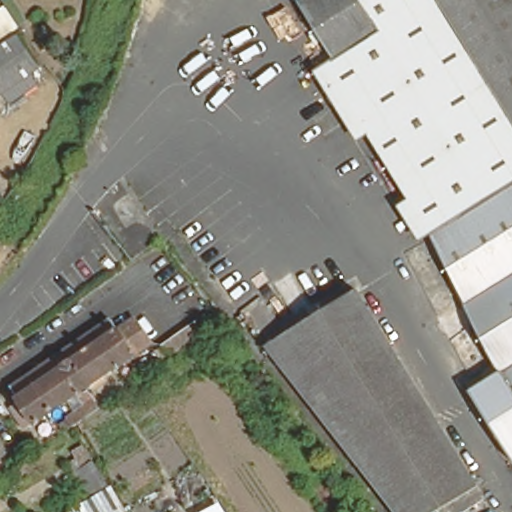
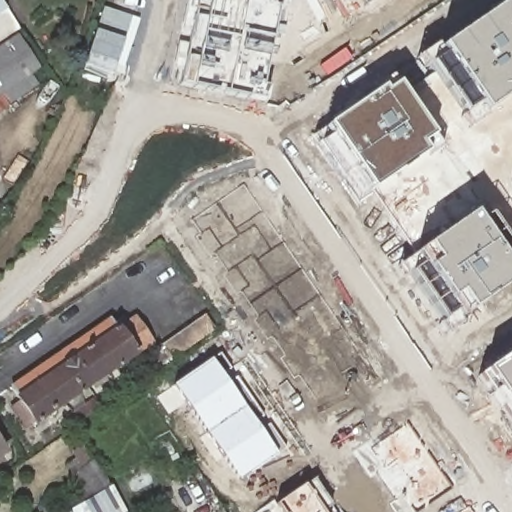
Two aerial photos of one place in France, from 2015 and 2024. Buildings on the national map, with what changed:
new [(193,85),(179,84),(182,69),(172,69),(178,43),(188,42),(190,28),(181,28),(186,0),(285,0),(283,10),(276,8),(270,39),(266,60),(261,84),(269,86),(265,102),(249,98),(249,99),(192,88),(193,85)]
demolished [(298,0),(512,0),(512,187),(499,195),(439,231),(437,228),(417,196),(415,192),(401,170),(376,129),(333,58),(297,0),(298,0)]
new [(365,6),(360,0),(371,0),(365,6)]
new [(435,45),(437,49),(505,4),(511,0),(512,0),(512,93),(482,113),(468,129),(458,114),(460,110),(432,73),(426,65),(423,68),(416,57),(435,45)]
unchanged [(0,43),(0,9),(16,32),(0,43)]
unchanged [(30,81),(2,99),(0,95),(0,43),(16,32),(40,60),(24,70),(30,81)]
new [(368,193),(437,145),(401,93),(432,73),(460,110),(458,114),(468,129),(482,113),(512,93),(512,180),(510,182),(512,185),(512,254),(486,217),(475,221),(471,216),(425,246),(416,254),(368,193)]
new [(392,81),(395,85),(401,93),(437,145),(368,193),(323,129),(392,81)]
new [(512,180),(512,185),(510,182),(512,180)]
new [(242,182),(377,375),(324,411),(299,373),(293,377),(280,357),(283,353),(270,335),(267,337),(254,317),(257,314),(240,289),(235,292),(222,272),(227,270),(215,251),(210,254),(195,234),(200,231),(192,218),(242,182)]
demolished [(499,195),(512,187),(512,461),(470,390),(502,372),(464,299),(439,231),(499,195)]
new [(425,246),(471,216),(475,221),(486,217),(512,254),(512,272),(510,273),(512,277),(512,283),(460,318),(457,315),(445,333),(437,322),(439,316),(409,273),(406,278),(398,265),(416,254),(425,246)]
demolished [(480,485),(436,512),(400,512),(272,344),(359,289),(480,485)]
unchanged [(111,329),(129,318),(145,342),(29,417),(7,384),(106,321),(111,329)]
unchanged [(210,333),(165,362),(157,349),(200,320),(210,333)]
new [(483,371),(512,352),(512,425),(478,374),(483,371)]
new [(210,357),(276,452),(239,480),(174,383),(210,357)]
unchanged [(73,428),(66,418),(94,399),(100,409),(79,424),(73,428)]
new [(371,445),(405,421),(451,488),(415,510),(416,512),(397,512),(389,500),(393,497),(375,471),(370,475),(351,449),(366,438),(371,445)]
unchanged [(0,453),(0,444),(4,450),(0,453)]
unchanged [(89,496),(72,472),(75,470),(66,454),(79,446),(83,444),(85,447),(106,484),(89,496)]
new [(276,505),(303,486),(315,479),(333,504),(323,510),(324,512),(254,512),(272,500),(276,505)]
unchanged [(101,490),(112,512),(74,512),(72,508),(82,501),(101,490)]

